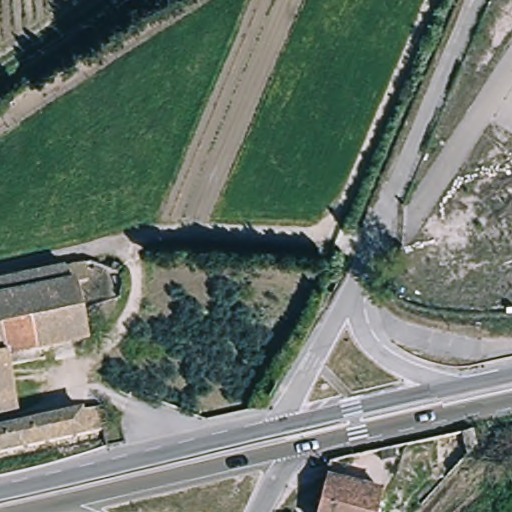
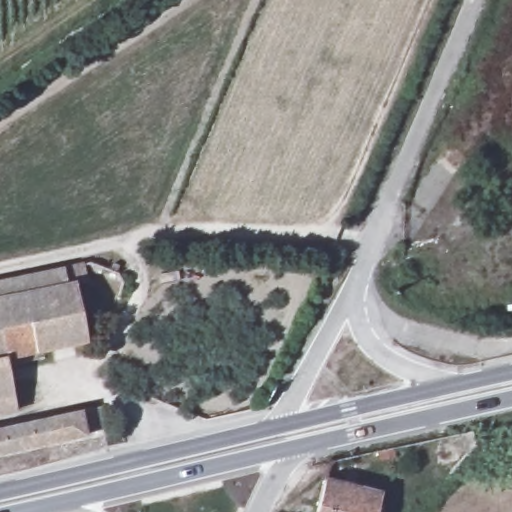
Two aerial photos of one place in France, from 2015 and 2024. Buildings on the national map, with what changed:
unchanged [(89,276),(75,281),(85,337),(9,353),(20,408),(0,413),(0,277),(86,260),(89,276)]
unchanged [(100,428),(0,450),(0,425),(96,405),(100,428)]
unchanged [(362,487),(380,492),(375,512),(314,512),(323,477),(362,487)]

